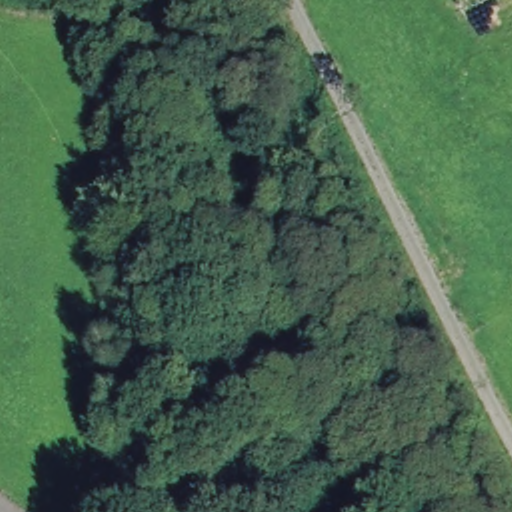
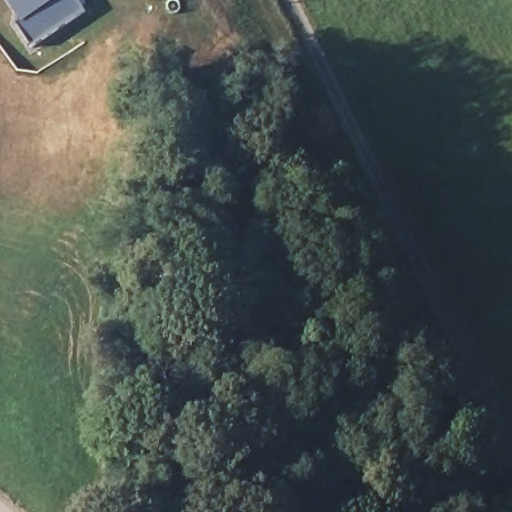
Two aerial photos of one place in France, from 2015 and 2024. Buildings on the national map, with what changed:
new [(85,11),(31,45),(15,23),(21,20),(9,0),(78,0),(85,11)]

